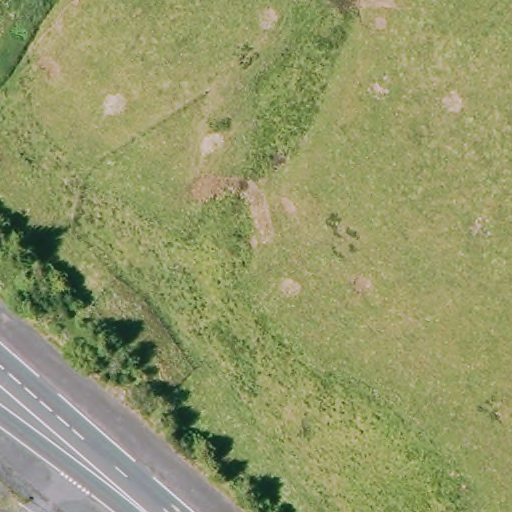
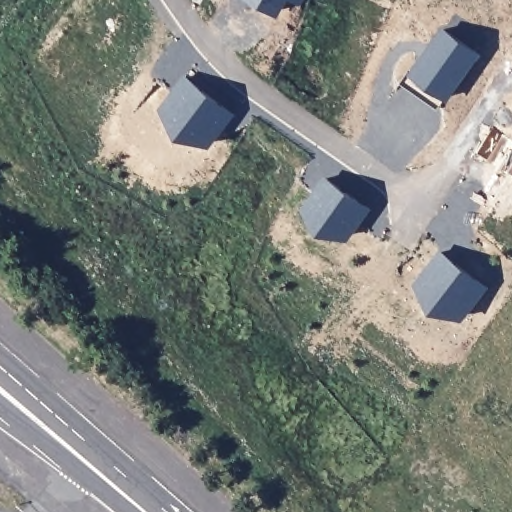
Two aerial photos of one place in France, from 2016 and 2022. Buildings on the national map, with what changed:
new [(273,13),(255,0),(283,0),(273,13)]
new [(296,6),(288,0),(300,0),(296,6)]
new [(440,31),(473,54),(442,98),(408,74),(440,31)]
new [(181,78),(227,114),(204,144),(177,133),(158,109),(181,78)]
new [(488,128),(512,145),(512,167),(505,177),(471,153),(488,128)]
new [(345,242),(317,232),(298,208),(320,177),(367,210),(345,242)]
new [(437,253),(480,287),(457,318),(430,307),(413,284),(437,253)]

